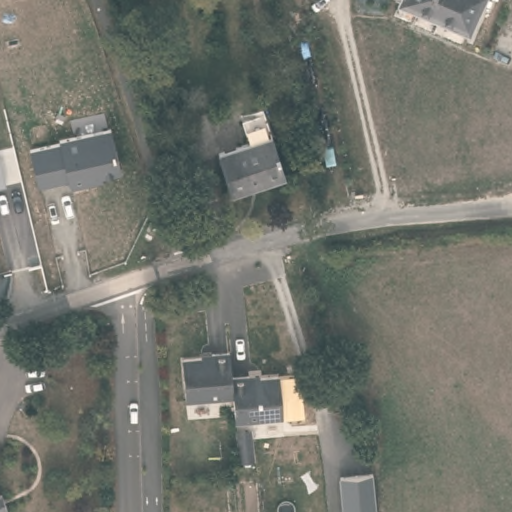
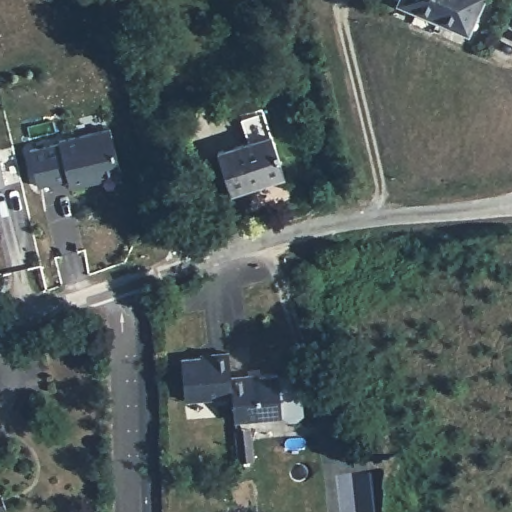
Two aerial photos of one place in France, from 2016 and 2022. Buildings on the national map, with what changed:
unchanged [(467,35),(395,5),(397,0),(482,0),(467,35)]
unchanged [(281,185),(226,203),(212,161),(244,150),(237,130),(261,122),(281,185)]
unchanged [(121,174),(71,188),(69,180),(37,187),(27,148),(109,126),(121,174)]
unchanged [(6,186),(0,187),(0,160),(6,186)]
unchanged [(182,400),(179,358),(209,355),(209,353),(226,351),(228,376),(230,395),(182,400)]
unchanged [(245,375),(245,377),(276,374),(280,415),(232,420),(230,395),(228,376),(245,375)]
unchanged [(250,428),(252,458),(240,460),(237,430),(250,428)]
unchanged [(372,475),(377,512),(344,512),(339,477),(372,473),(372,475)]

